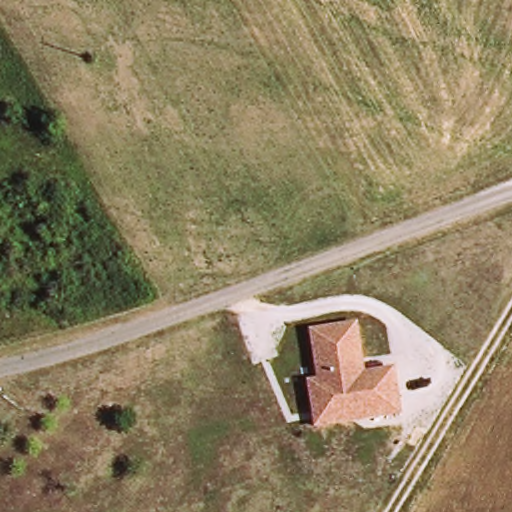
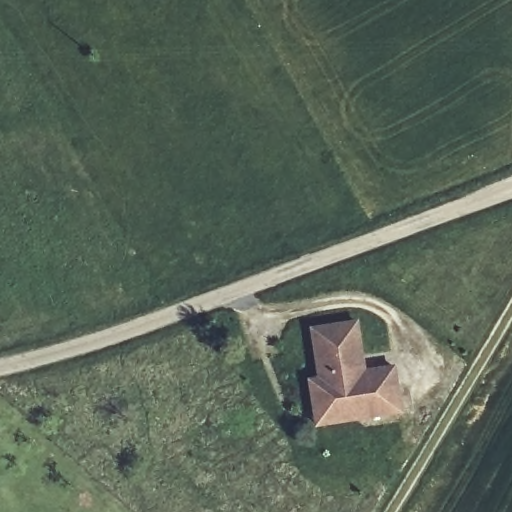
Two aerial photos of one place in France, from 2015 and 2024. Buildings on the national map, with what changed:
unchanged [(351,329),(358,380),(388,375),(394,420),(365,425),(362,408),(319,415),(315,388),(310,357),(306,337),(327,334),(351,329)]
unchanged [(312,434),(305,389),(315,388),(319,415),(362,408),(365,425),(312,434)]

